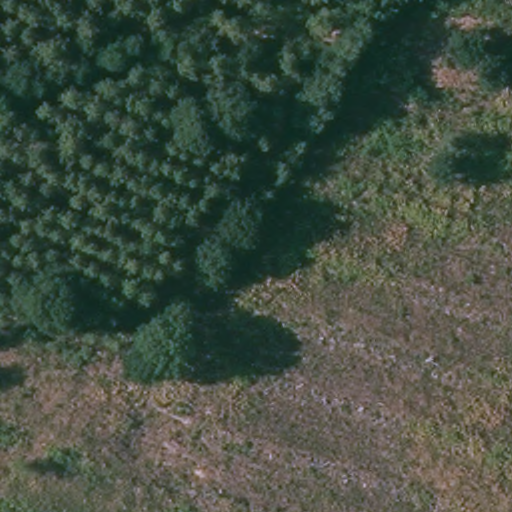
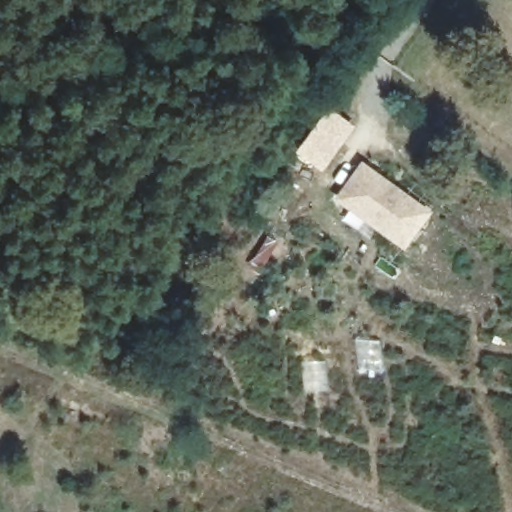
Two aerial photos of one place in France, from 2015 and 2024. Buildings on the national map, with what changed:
new [(355,126),(322,172),(295,152),(330,105),(355,126)]
new [(431,212),(405,249),(332,199),(362,160),(431,212)]

